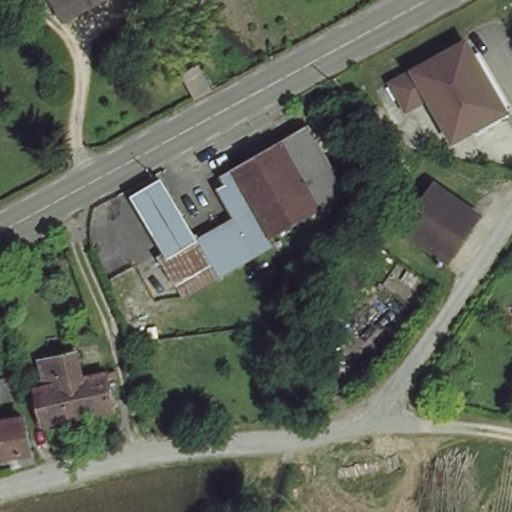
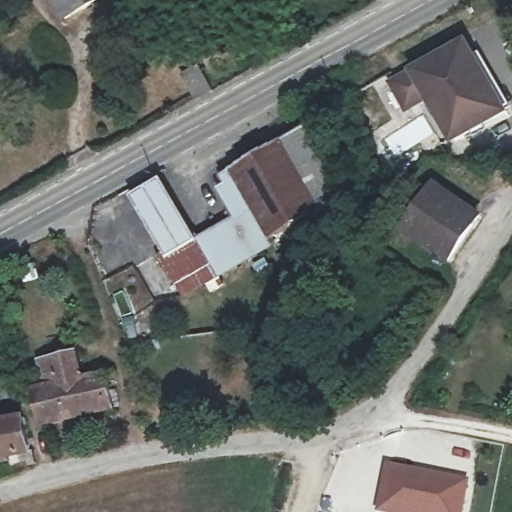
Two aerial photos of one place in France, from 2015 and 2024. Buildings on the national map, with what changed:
unchanged [(98,0),(68,16),(60,0),(98,0)]
unchanged [(447,55),(465,44),(499,99),(507,112),(456,143),(430,100),(409,113),(394,87),(447,55)]
unchanged [(177,71),(192,62),(206,85),(190,95),(177,71)]
unchanged [(312,121),(350,191),(274,236),(244,186),(225,197),(212,177),(312,121)]
unchanged [(197,230),(233,210),(225,197),(244,186),(273,236),(177,297),(154,258),(165,252),(129,191),(163,171),(197,230)]
unchanged [(477,211),(447,256),(402,227),(430,182),(477,211)]
unchanged [(42,382),(45,382),(42,370),(47,368),(43,352),(81,343),(87,370),(91,369),(97,368),(119,362),(120,370),(113,371),(120,400),(75,410),(49,416),(42,382)]
unchanged [(16,462),(14,451),(0,455),(0,428),(2,427),(0,413),(27,406),(40,456),(16,462)]
new [(470,481),(463,512),(375,512),(385,465),(470,481)]

